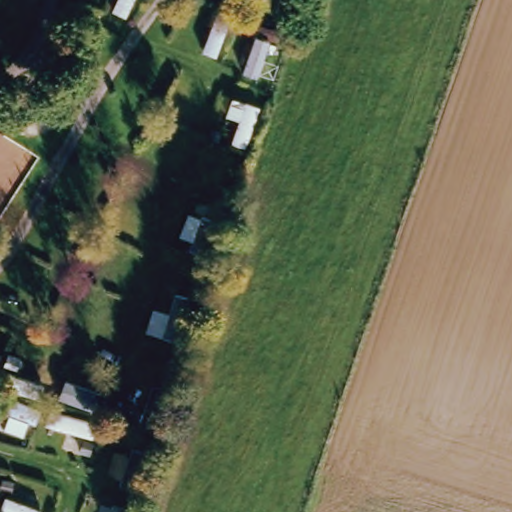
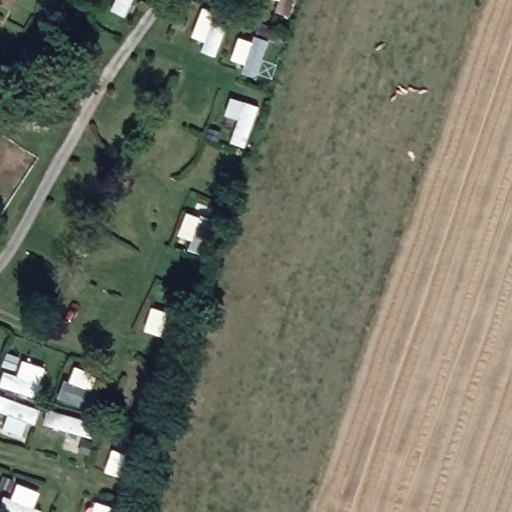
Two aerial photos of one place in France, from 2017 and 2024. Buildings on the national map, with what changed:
unchanged [(34,428),(0,416),(0,394),(41,409),(34,428)]

